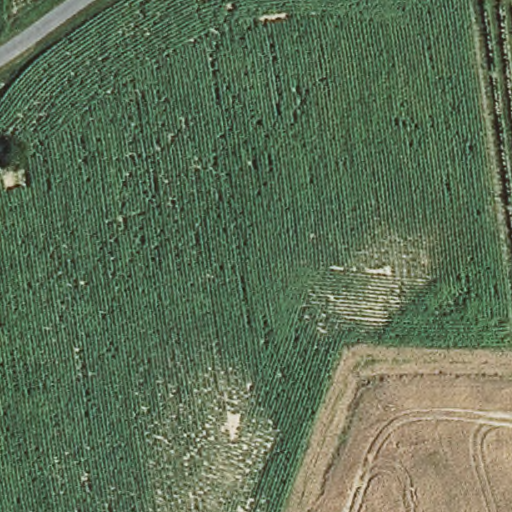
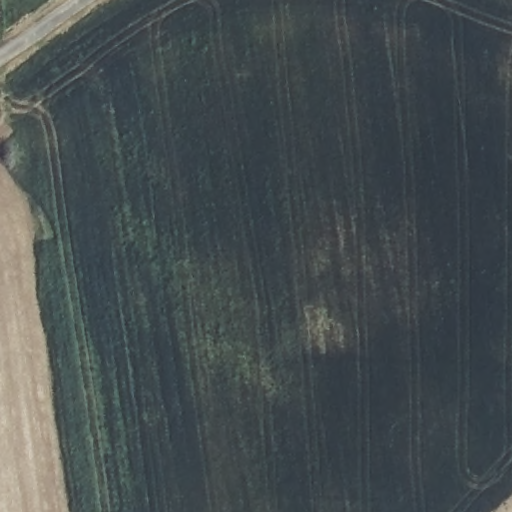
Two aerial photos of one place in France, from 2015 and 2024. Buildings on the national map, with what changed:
[]

